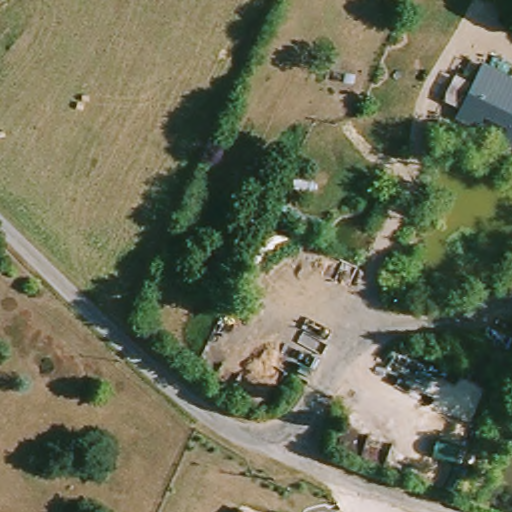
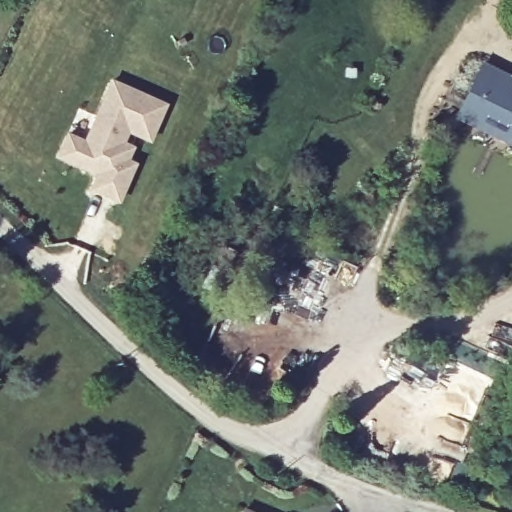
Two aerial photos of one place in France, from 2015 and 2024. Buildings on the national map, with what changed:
unchanged [(485,68),(512,82),(512,146),(459,120),(485,68)]
new [(64,134),(79,141),(82,141),(109,82),(161,105),(145,140),(124,130),(118,143),(128,147),(122,160),(131,164),(115,200),(87,188),(94,174),(55,156),(64,134)]
unchanged [(253,512),(242,512),(244,508),(253,512)]

